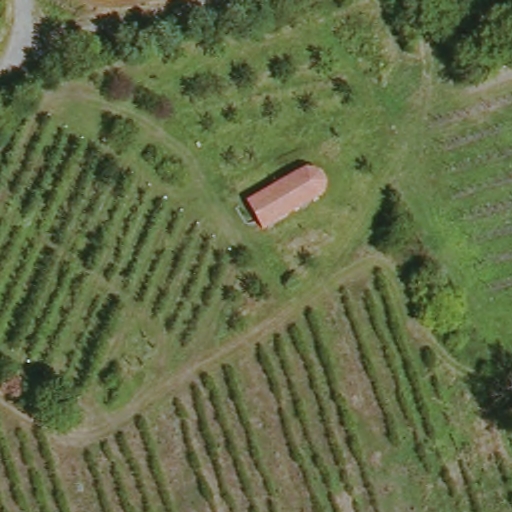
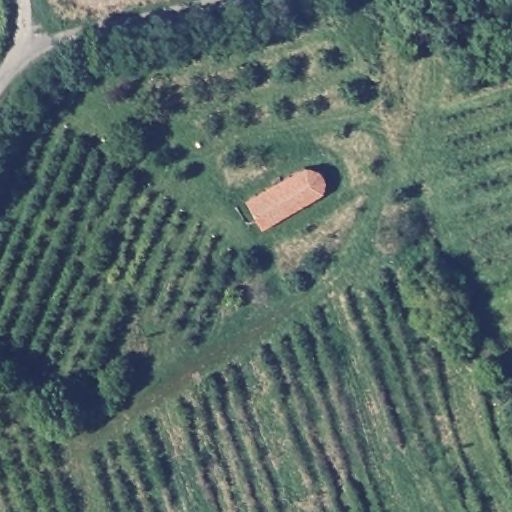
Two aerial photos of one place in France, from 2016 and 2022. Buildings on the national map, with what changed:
unchanged [(310,165),(320,166),(326,172),(330,177),(332,188),(330,198),(324,205),(270,229),(253,190),(310,165)]

